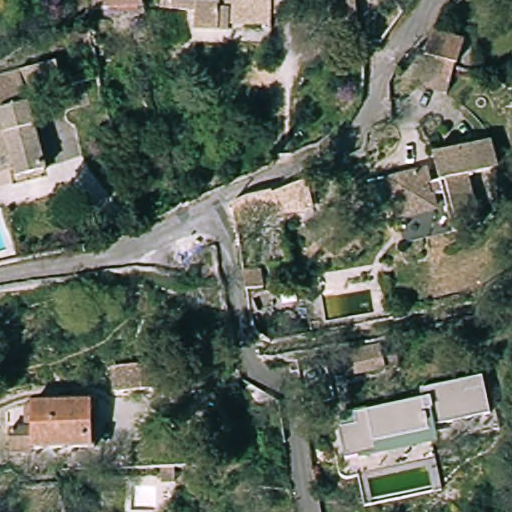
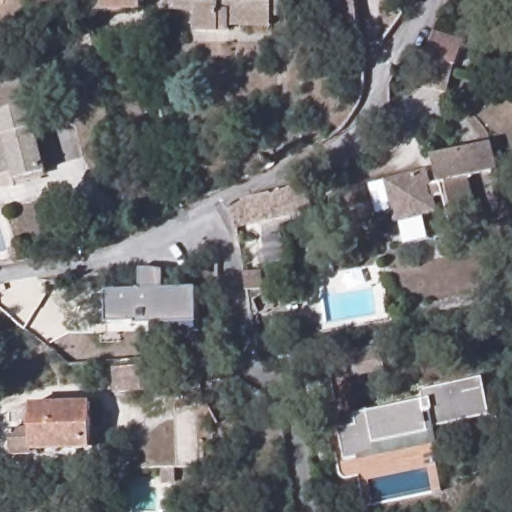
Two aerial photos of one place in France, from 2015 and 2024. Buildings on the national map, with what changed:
unchanged [(0,1),(0,0),(2,0),(2,1),(0,1)]
unchanged [(151,0),(150,18),(136,17),(90,15),(92,0),(151,0)]
unchanged [(315,0),(315,15),(283,14),(283,25),(240,25),(240,30),(205,30),(206,12),(171,6),(172,0),(315,0)]
unchanged [(342,22),(322,22),(323,0),(338,0),(339,5),(342,22)]
unchanged [(458,43),(455,71),(424,65),(428,39),(458,43)]
unchanged [(66,90),(33,98),(49,173),(21,180),(18,171),(0,175),(0,75),(57,62),(66,90)]
unchanged [(454,70),(455,71),(454,95),(422,92),(424,65),(454,70)]
unchanged [(431,192),(435,210),(399,220),(387,175),(435,162),(432,150),(492,135),(499,165),(471,173),(484,220),(460,226),(450,188),(431,192)]
unchanged [(319,189),(311,191),(316,212),(235,231),(232,214),(317,176),(319,189)]
new [(141,289),(141,268),(163,270),(164,289),(197,288),(199,323),(136,325),(136,321),(107,323),(106,291),(141,289)]
unchanged [(254,275),(272,272),(276,292),(257,295),(254,275)]
unchanged [(377,347),(382,371),(342,378),(337,355),(377,347)]
unchanged [(153,365),(154,373),(172,373),(174,389),(112,391),(111,366),(153,365)]
unchanged [(490,415),(432,424),(436,443),(355,457),(354,453),(344,455),(336,407),(420,393),(419,381),(482,371),(490,415)]
unchanged [(29,433),(29,407),(89,405),(91,454),(30,455),(30,459),(11,460),(10,435),(29,433)]

